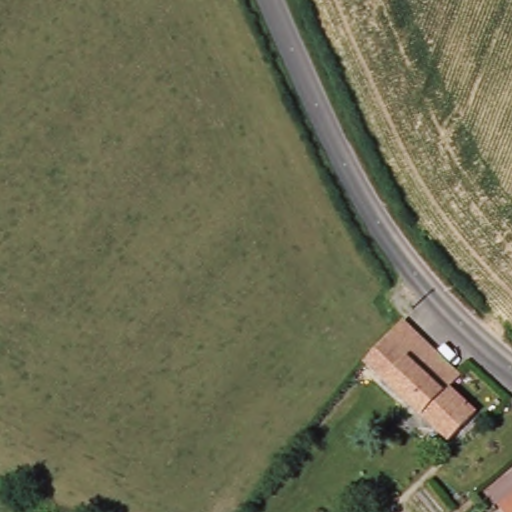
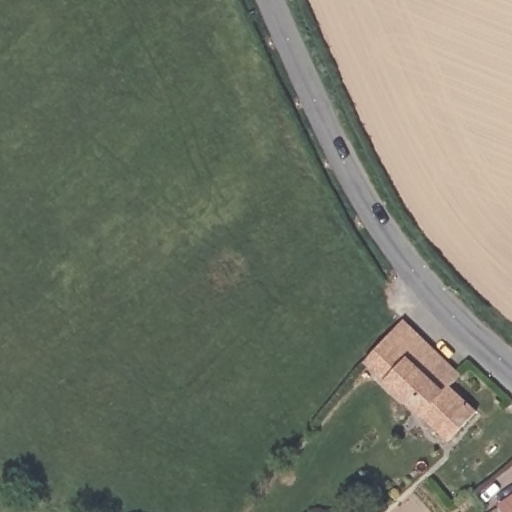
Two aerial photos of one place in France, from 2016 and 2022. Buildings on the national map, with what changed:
unchanged [(445,364),(407,406),(376,378),(363,367),(404,325),(445,364)]
unchanged [(445,364),(461,380),(451,391),(477,414),(449,444),(407,406),(445,364)]
unchanged [(512,499),(512,512),(502,512),(499,508),(512,499)]

